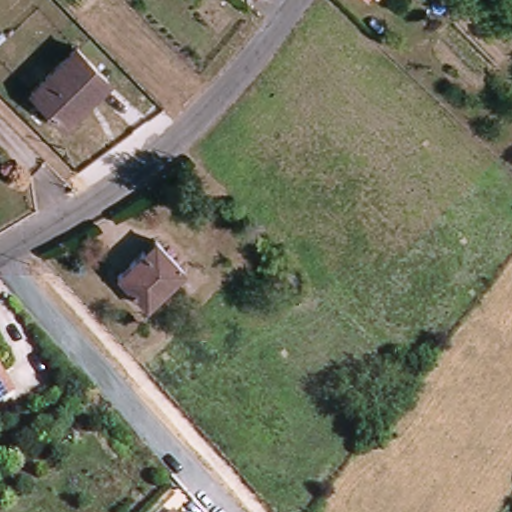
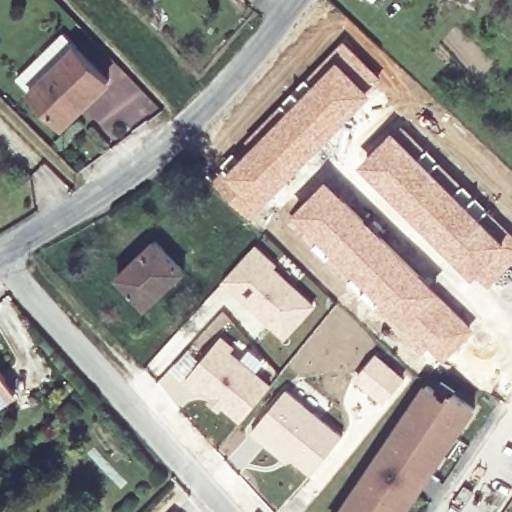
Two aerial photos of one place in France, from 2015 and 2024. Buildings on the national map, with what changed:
new [(344,40),(380,76),(368,89),(339,59),(311,83),(306,77),(344,40)]
unchanged [(86,46),(117,80),(72,122),(40,89),(86,46)]
new [(250,145),(283,106),(285,107),(299,95),(311,83),(339,59),(368,89),(371,92),(320,147),(252,216),(213,179),(250,145)]
new [(427,156),(451,182),(469,196),(489,209),(487,214),(506,231),(509,229),(512,232),(512,262),(489,286),(447,249),(360,163),(395,127),(427,156)]
new [(327,177),(398,246),(436,286),(475,330),(444,360),(430,347),(423,353),(359,292),(367,285),(356,273),(348,281),(287,220),(327,177)]
unchanged [(169,236),(199,267),(162,302),(131,272),(169,236)]
new [(224,278),(257,244),(277,265),(274,267),(312,304),(286,333),(224,278)]
new [(189,349),(200,358),(221,334),(236,347),(234,350),(241,356),(248,348),(265,362),(258,371),(272,383),(239,423),(216,405),(184,376),(194,364),(188,359),(178,371),(172,367),(189,349)]
new [(376,352),(405,378),(392,392),(362,369),(376,352)]
unchanged [(26,395),(0,412),(0,355),(26,395)]
new [(427,382),(448,396),(453,390),(478,407),(408,512),(339,512),(427,382)]
new [(288,389),(345,436),(313,473),(294,456),(289,461),(254,431),(288,389)]
unchanged [(176,511),(178,512),(175,512),(176,511)]

